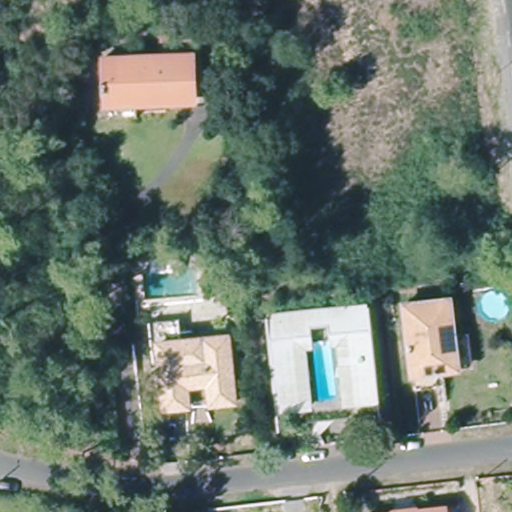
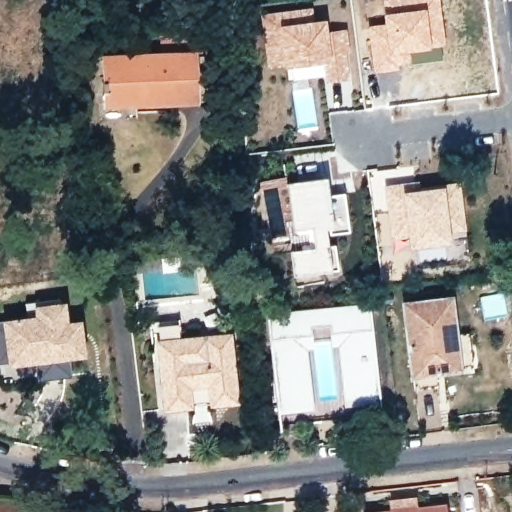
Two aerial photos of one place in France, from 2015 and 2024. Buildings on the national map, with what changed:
new [(381,0),(439,0),(445,44),(408,51),(410,65),(373,72),(365,26),(382,22),(381,0)]
new [(312,6),(314,18),(325,17),(327,30),(346,28),(351,78),(325,82),(323,76),(289,80),(286,65),(267,66),(259,13),(312,6)]
unchanged [(174,106),(111,114),(105,67),(146,60),(144,44),(178,39),(181,55),(188,104),(174,106)]
new [(285,177),(286,183),(326,177),(329,194),(344,192),(349,231),(327,234),(329,245),(334,244),(338,270),(292,277),(286,240),(271,243),(260,181),(285,177)]
new [(418,179),(419,187),(459,181),(466,235),(450,238),(451,243),(408,249),(408,246),(394,250),(384,184),(418,179)]
unchanged [(414,397),(412,367),(404,304),(449,298),(454,331),(466,329),(472,365),(458,367),(434,371),(437,393),(414,397)]
new [(26,315),(24,303),(65,300),(68,320),(81,319),(85,357),(69,359),(70,375),(36,379),(34,363),(5,365),(5,361),(0,362),(0,320),(26,315)]
unchanged [(297,401),(298,405),(275,408),(264,313),(365,302),(376,396),(349,399),(348,395),(340,396),(333,333),(324,333),(324,327),(305,329),(305,336),(300,336),(305,400),(297,401)]
unchanged [(239,394),(170,409),(157,346),(151,347),(147,329),(176,324),(180,341),(226,332),(239,394)]
unchanged [(445,507),(446,512),(405,512),(445,507)]

